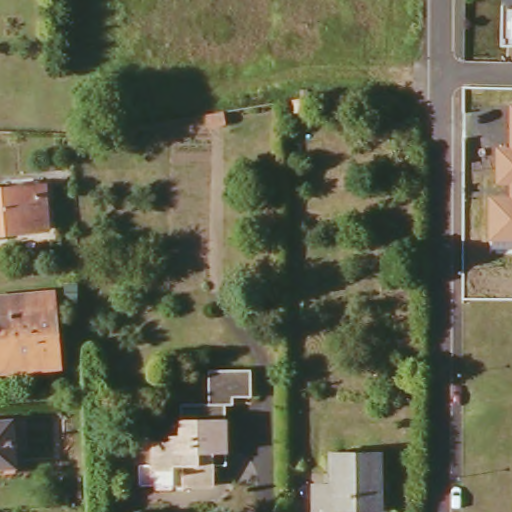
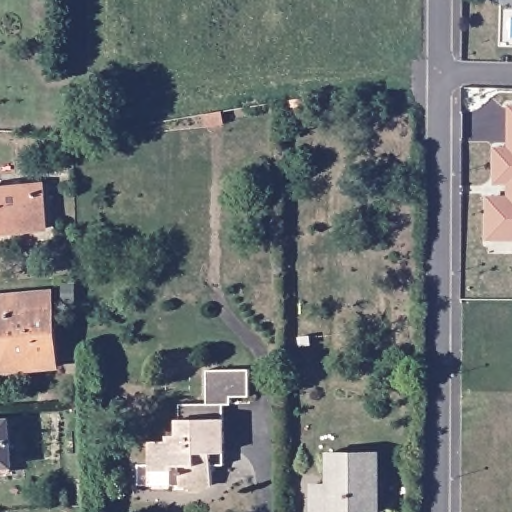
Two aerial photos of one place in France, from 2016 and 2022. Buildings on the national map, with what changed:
unchanged [(512,105),(512,241),(488,241),(488,196),(509,196),(508,184),(495,184),(496,146),(509,146),(509,105),(512,105)]
unchanged [(0,186),(38,182),(42,227),(0,231),(0,186)]
unchanged [(0,298),(17,296),(48,292),(54,366),(33,368),(33,374),(0,377),(0,298)]
unchanged [(201,366),(210,365),(243,363),(244,388),(203,390),(201,366)]
unchanged [(148,439),(166,439),(166,431),(176,430),(174,398),(219,395),(221,448),(209,449),(211,489),(183,491),(181,473),(151,475),(148,439)]
unchanged [(0,424),(8,423),(13,466),(0,467),(0,424)]
unchanged [(331,454),(381,453),(381,511),(358,512),(315,512),(315,485),(331,484),(331,454)]

